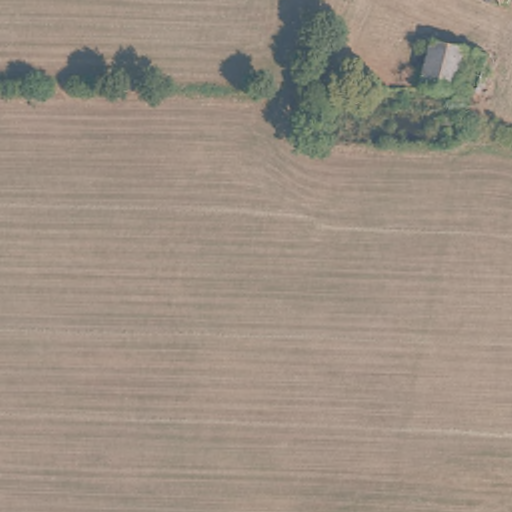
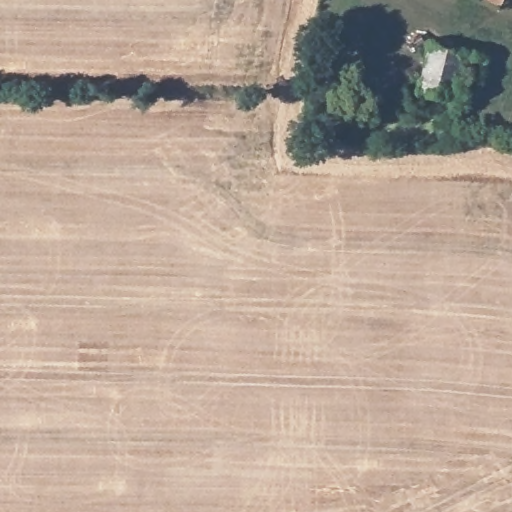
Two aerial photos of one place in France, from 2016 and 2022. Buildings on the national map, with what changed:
unchanged [(487,0),(506,0),(502,7),(487,0)]
unchanged [(478,95),(459,89),(422,77),(437,38),(492,57),(478,95)]

